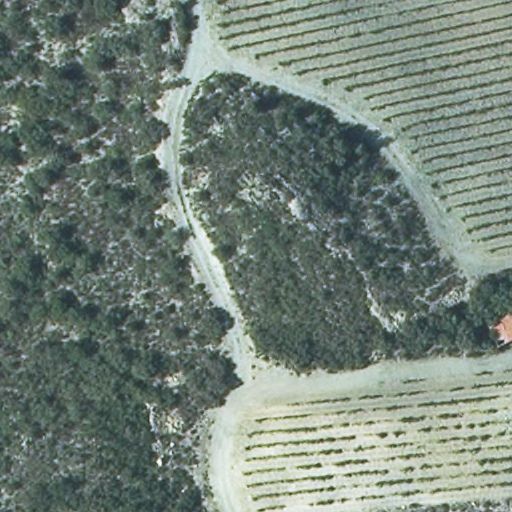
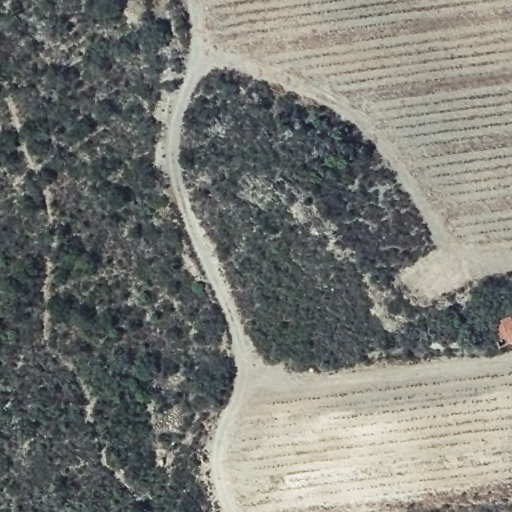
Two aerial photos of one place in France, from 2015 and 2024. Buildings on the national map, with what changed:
unchanged [(512,313),(512,337),(500,343),(490,322),(512,313)]

